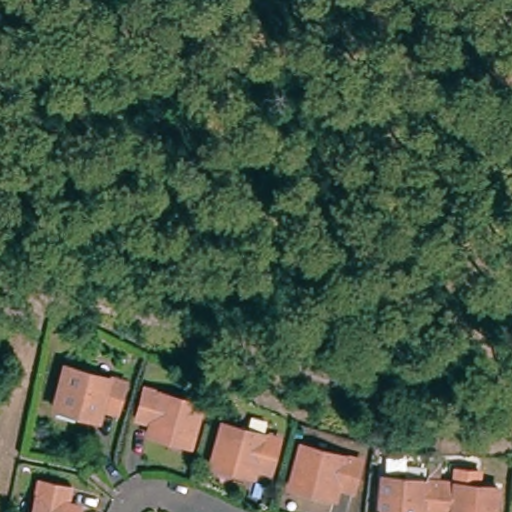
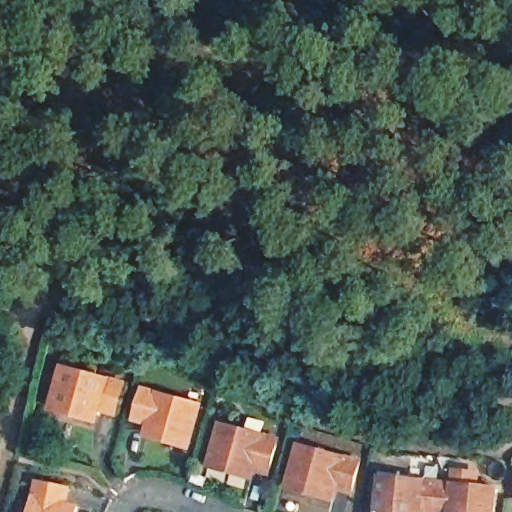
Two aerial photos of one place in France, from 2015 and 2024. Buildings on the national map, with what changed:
unchanged [(73,418),(50,411),(62,369),(120,386),(113,416),(97,413),(95,417),(93,424),(73,418)]
unchanged [(143,432),(144,426),(130,422),(139,393),(197,410),(185,451),(162,444),(141,438),(143,432)]
unchanged [(208,461),(219,426),(277,443),(269,471),(255,467),(252,480),(229,472),(206,465),(208,461)]
unchanged [(293,478),(304,443),(363,461),(354,490),(341,486),(337,497),(314,490),(292,483),(293,478)]
unchanged [(444,505),(416,502),(415,508),(415,512),(388,512),(369,510),(373,472),(489,485),(486,512),(443,512),(443,511),(444,505)]
unchanged [(65,486),(62,500),(74,503),(72,512),(27,512),(34,479),(65,486)]

